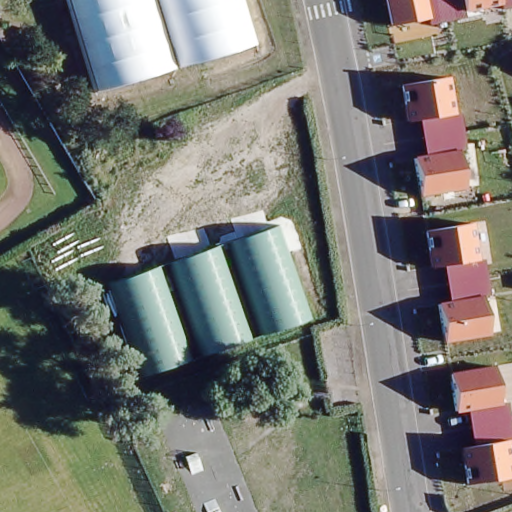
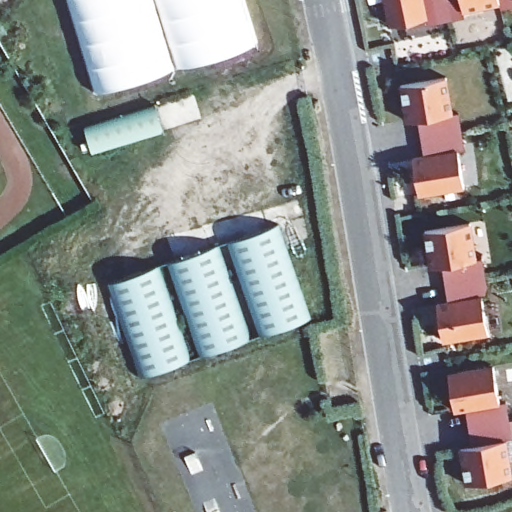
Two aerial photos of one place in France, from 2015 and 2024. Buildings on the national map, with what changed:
unchanged [(244,0),(257,44),(97,93),(68,0),(244,0)]
unchanged [(500,11),(500,5),(465,11),(465,18),(430,25),(429,18),(389,26),(384,0),(512,0),(512,8),(500,11)]
unchanged [(453,114),(460,113),(465,150),(457,151),(464,189),(419,196),(412,156),(425,154),(419,120),(406,121),(400,85),(448,76),(453,114)]
new [(157,103),(165,129),(93,151),(85,126),(157,103)]
unchanged [(477,260),(484,259),(490,296),(482,297),(489,336),(444,344),(437,303),(448,301),(442,267),(431,269),(425,231),(471,223),(477,260)]
unchanged [(279,225),(312,319),(140,379),(106,286),(279,225)]
unchanged [(500,404),(507,403),(512,433),(512,439),(507,440),(512,471),(512,478),(466,485),(460,449),(472,448),(466,411),(455,412),(450,373),(493,365),(500,404)]

